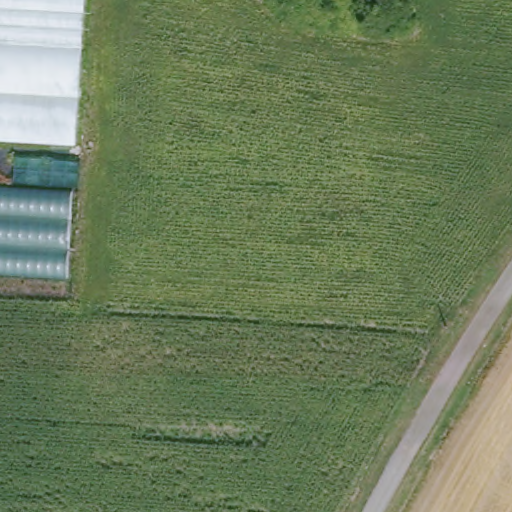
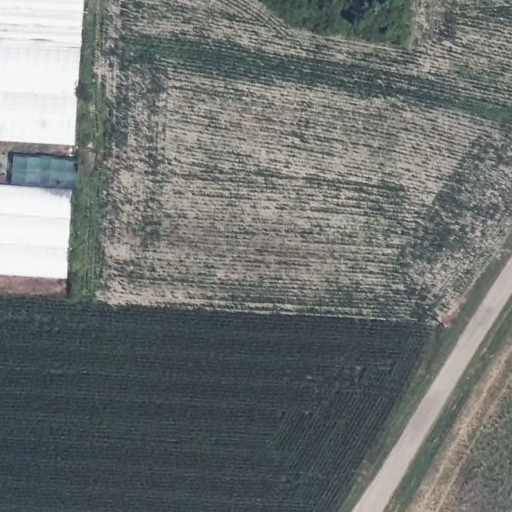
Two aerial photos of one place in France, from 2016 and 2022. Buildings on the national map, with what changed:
unchanged [(0,0),(82,0),(72,145),(0,140),(0,0)]
unchanged [(0,183),(67,187),(62,275),(0,272),(0,183)]

